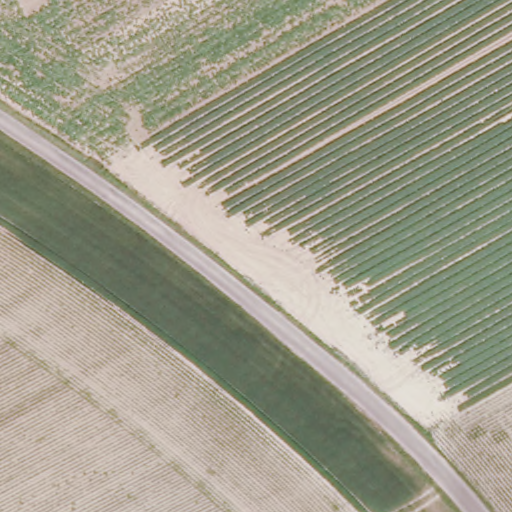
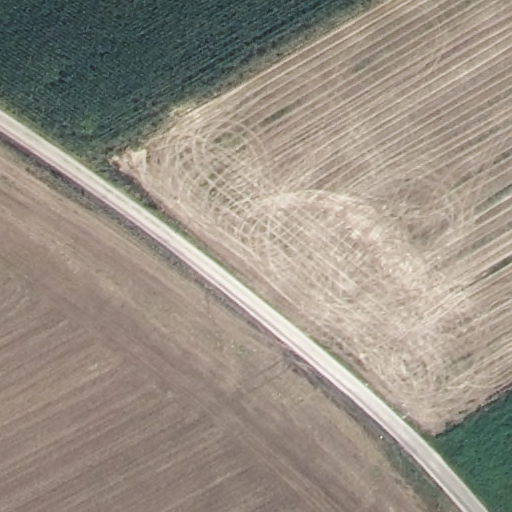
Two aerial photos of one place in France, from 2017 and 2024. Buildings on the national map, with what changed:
unchanged [(183,426),(200,409),(227,435),(210,452),(183,426)]

